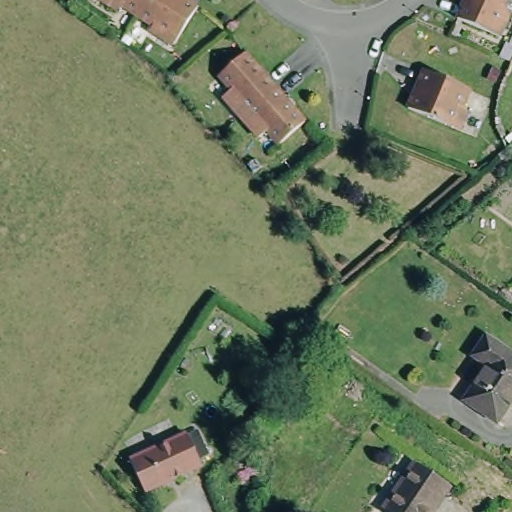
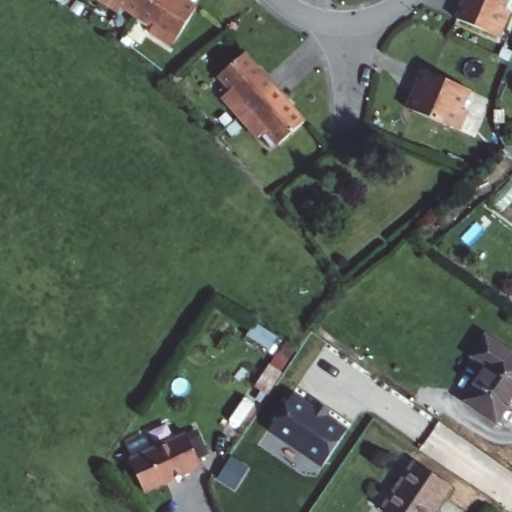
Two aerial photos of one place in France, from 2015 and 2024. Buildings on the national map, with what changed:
unchanged [(172,40),(149,27),(151,22),(138,14),(120,4),(117,9),(102,0),(189,0),(193,3),(172,40)]
unchanged [(454,14),(460,0),(500,0),(499,4),(506,7),(495,31),(454,14)]
unchanged [(280,138),(269,126),(261,133),(224,95),(232,86),(220,75),(244,52),(304,115),(280,138)]
unchanged [(464,89),(456,106),(462,109),(453,128),(404,106),(421,69),(464,89)]
unchanged [(512,396),(494,423),(461,401),(486,366),(471,356),(484,337),(512,356),(512,396)]
new [(313,408),(317,403),(328,411),(324,416),(345,431),(320,467),(267,429),(292,394),(313,408)]
unchanged [(143,484),(133,453),(191,432),(202,463),(143,484)]
unchanged [(435,512),(396,512),(388,507),(420,459),(456,482),(435,512)]

